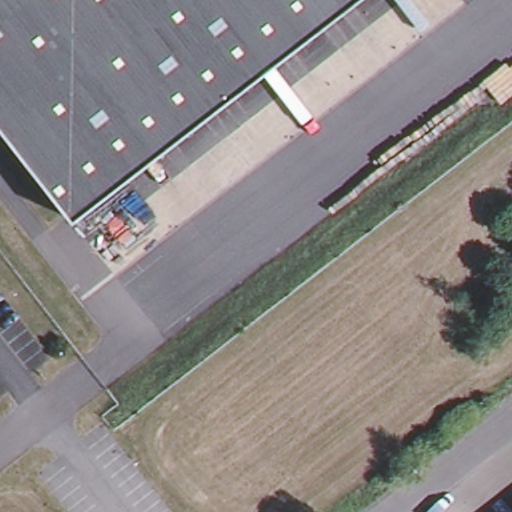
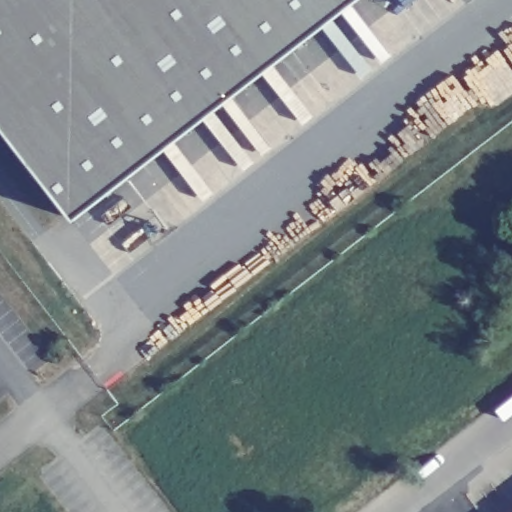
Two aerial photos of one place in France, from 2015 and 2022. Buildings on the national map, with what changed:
unchanged [(68,220),(0,133),(0,0),(351,0),(68,220)]

